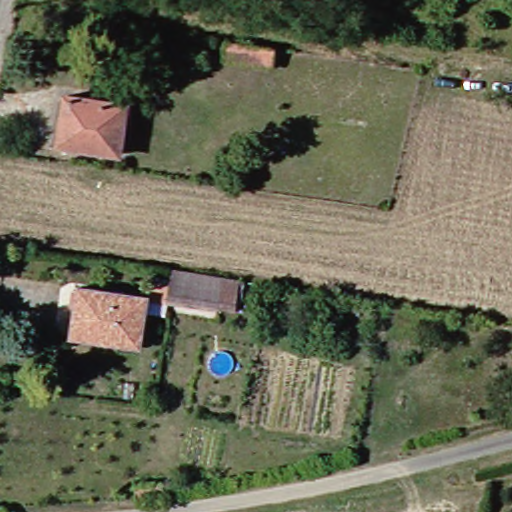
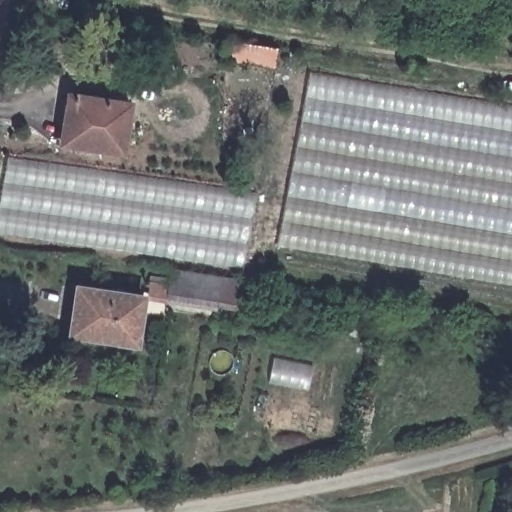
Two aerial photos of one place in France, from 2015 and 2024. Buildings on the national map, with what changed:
unchanged [(267,61),(217,54),(219,34),(270,42),(267,61)]
new [(275,249),(308,72),(512,106),(512,288),(275,249)]
unchanged [(77,95),(136,103),(127,153),(71,145),(77,95)]
new [(0,236),(0,195),(6,159),(257,195),(242,272),(0,236)]
demolished [(23,237),(31,189),(512,260),(512,309),(23,237)]
unchanged [(182,275),(232,281),(230,307),(179,300),(182,275)]
unchanged [(77,335),(82,287),(148,295),(143,342),(77,335)]

